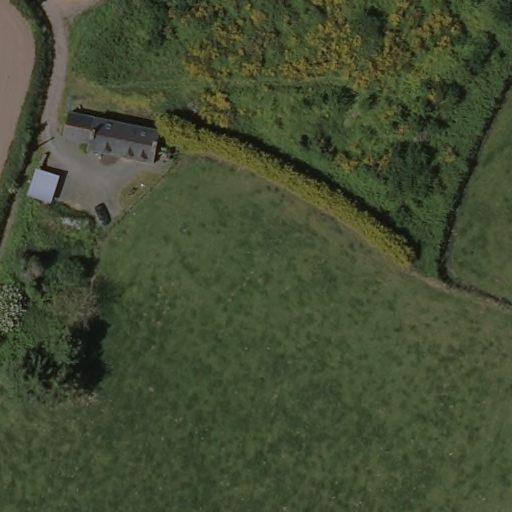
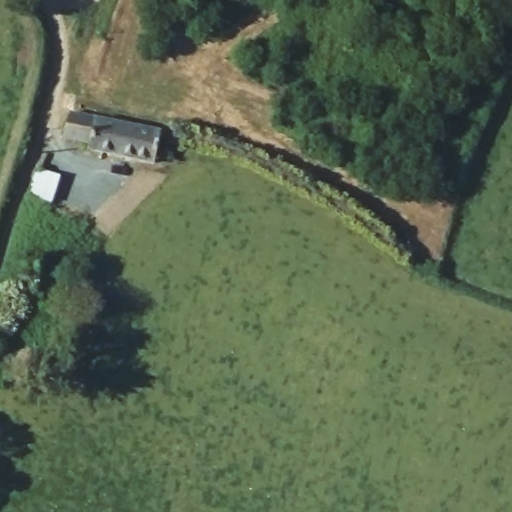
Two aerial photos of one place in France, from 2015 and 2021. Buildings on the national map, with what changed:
unchanged [(159,127),(153,160),(87,149),(88,141),(61,136),(67,111),(111,119),(144,125),(159,127)]
unchanged [(23,224),(35,196),(53,159),(69,164),(55,200),(54,204),(99,215),(94,231),(89,230),(76,226),(71,241),(21,229),(23,224)]

